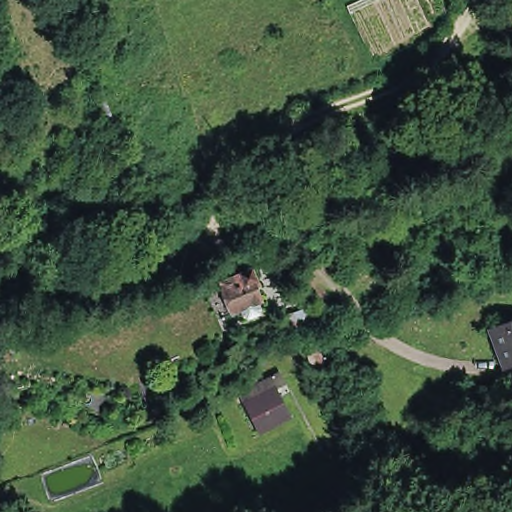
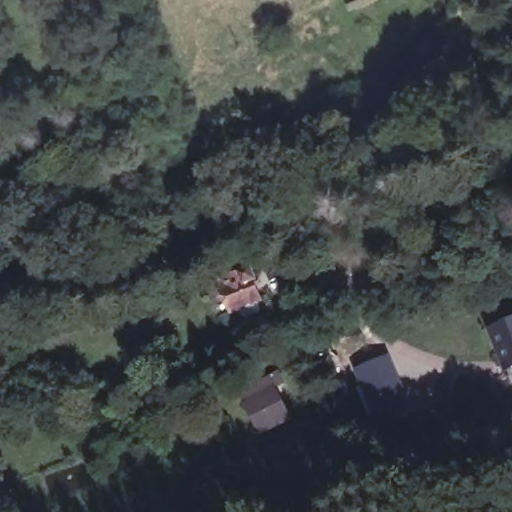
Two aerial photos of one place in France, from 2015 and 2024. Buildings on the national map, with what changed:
unchanged [(123,168),(138,207),(108,212),(96,175),(123,168)]
unchanged [(225,314),(216,291),(218,290),(210,270),(234,261),(239,274),(245,271),(250,283),(247,284),(255,303),(225,314)]
unchanged [(488,334),(512,326),(512,372),(510,372),(505,374),(502,368),(488,334)]
new [(354,371),(390,355),(412,404),(375,420),(354,371)]
unchanged [(240,400),(270,384),(274,393),(289,423),(260,438),(244,409),(240,400)]

